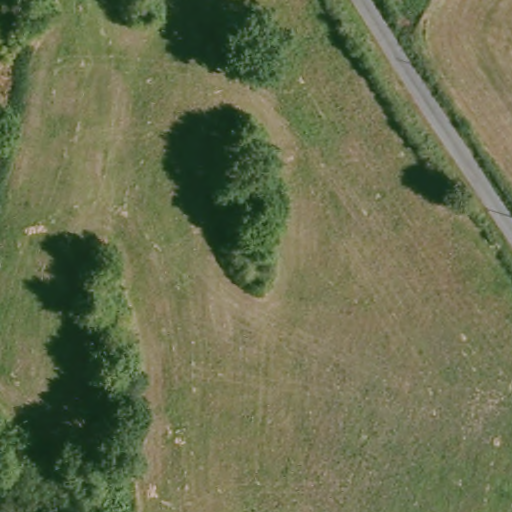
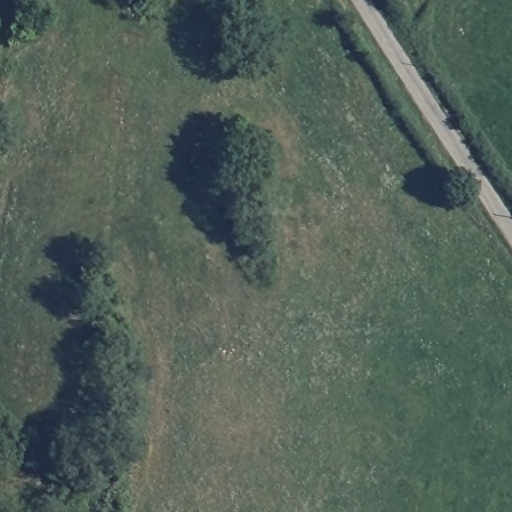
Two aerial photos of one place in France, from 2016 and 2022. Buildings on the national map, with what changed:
[]

